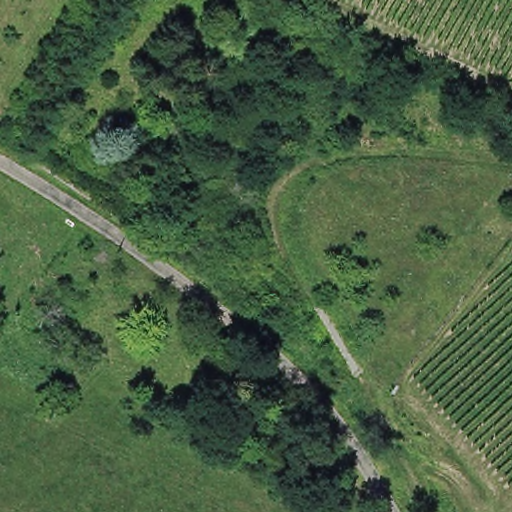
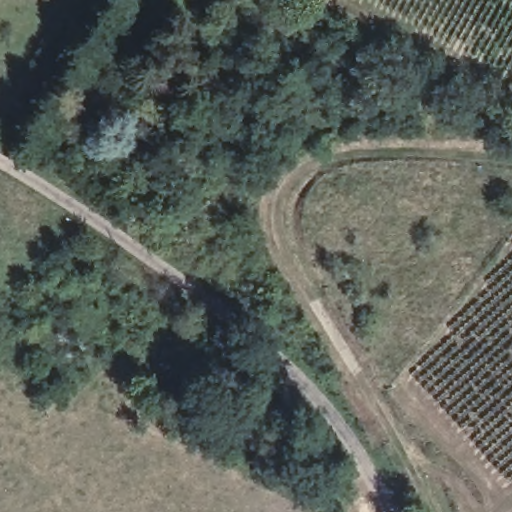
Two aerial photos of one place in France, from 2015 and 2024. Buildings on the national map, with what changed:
[]

